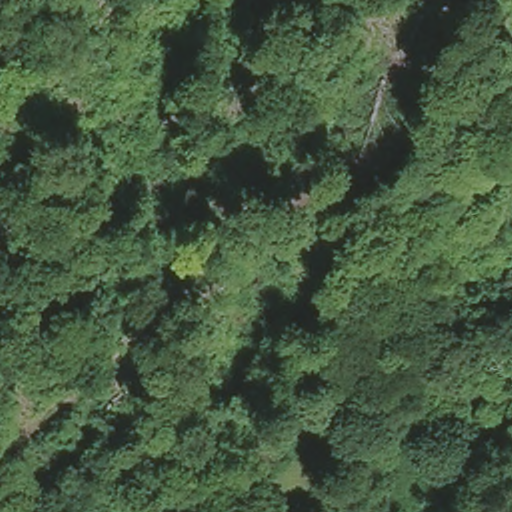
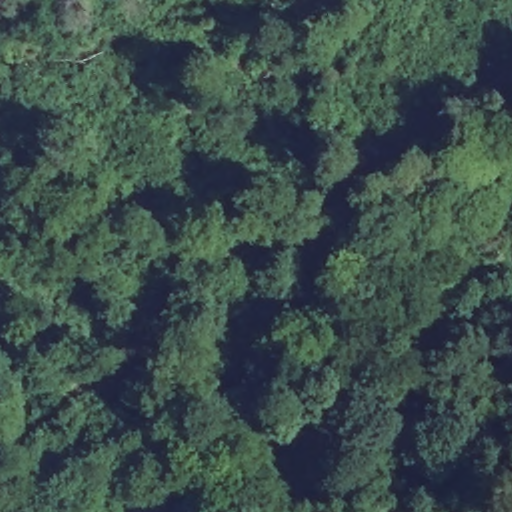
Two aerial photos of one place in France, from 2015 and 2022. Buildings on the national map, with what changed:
unchanged [(256,441),(271,428),(304,401),(318,418),(285,445),(270,458),(256,441)]
unchanged [(196,487),(186,500),(185,496),(159,512),(130,512),(189,476),(196,487)]

